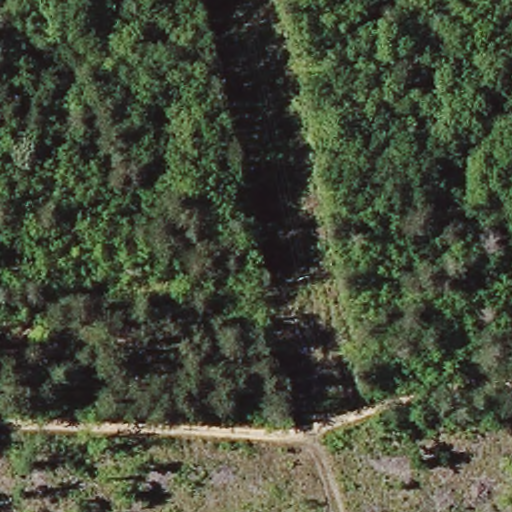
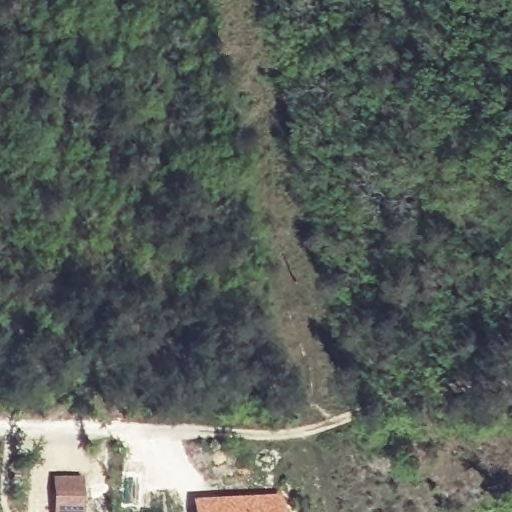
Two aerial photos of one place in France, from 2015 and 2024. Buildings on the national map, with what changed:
new [(52,479),(82,479),(82,512),(51,512),(52,479)]
new [(278,496),(279,512),(191,512),(190,500),(278,496)]

